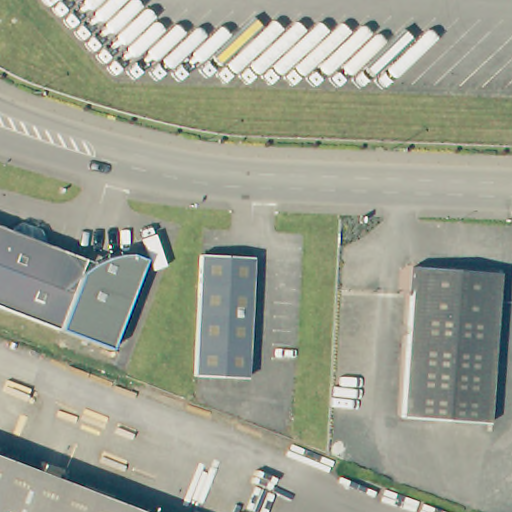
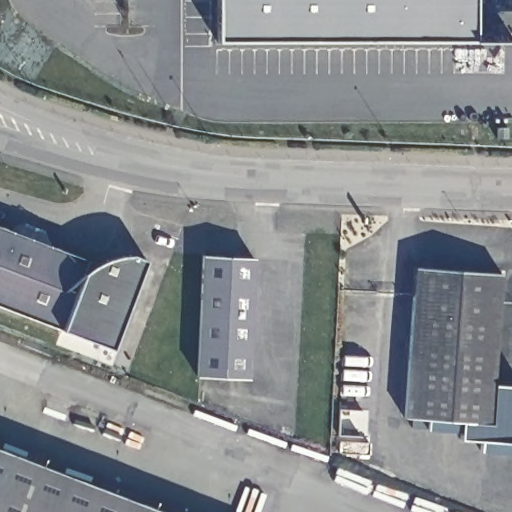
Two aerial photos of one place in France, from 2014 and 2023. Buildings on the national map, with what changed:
new [(216,41),(217,0),(476,0),(476,41),(216,41)]
unchanged [(83,271),(84,270),(85,269),(86,268),(87,267),(89,266),(91,264),(94,263),(98,261),(99,260),(100,259),(103,258),(105,258),(107,257),(109,256),(112,255),(113,255),(115,255),(116,255),(119,254),(120,254),(125,254),(128,254),(130,254),(144,259),(110,349),(59,330),(0,307),(0,227),(10,231),(12,227),(21,222),(41,230),(46,240),(45,244),(62,251),(81,273),(82,272),(83,271)]
unchanged [(253,259),(246,379),(196,376),(202,256),(253,259)]
unchanged [(415,267),(501,271),(494,422),(408,418),(415,267)]
new [(494,422),(495,386),(512,386),(512,453),(480,451),(480,440),(460,438),(461,432),(427,430),(429,419),(494,422)]
unchanged [(0,470),(110,512),(0,512),(0,470)]

